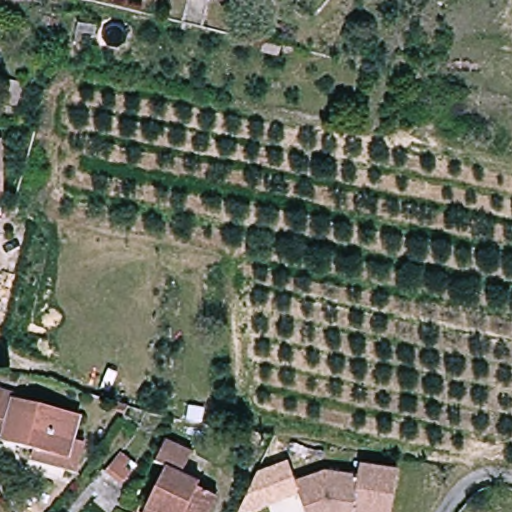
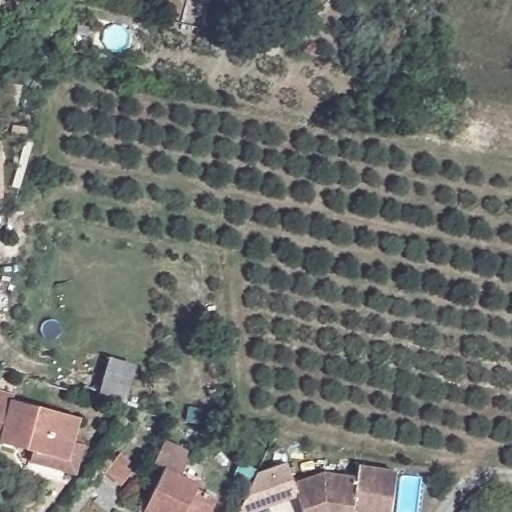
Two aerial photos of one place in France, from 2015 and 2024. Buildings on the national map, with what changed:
new [(136,365),(123,405),(97,396),(109,356),(136,365)]
unchanged [(35,459),(37,447),(7,440),(7,436),(0,434),(0,387),(0,385),(18,390),(17,395),(85,412),(79,436),(90,439),(83,470),(35,459)]
unchanged [(157,459),(165,438),(192,447),(185,470),(203,476),(200,483),(222,490),(212,512),(147,512),(148,507),(167,463),(157,459)]
unchanged [(239,512),(257,473),(285,463),(293,486),(297,496),(254,512),(239,512)]
unchanged [(325,475),(357,479),(358,466),(395,472),(391,512),(302,512),(293,486),(325,475)]

